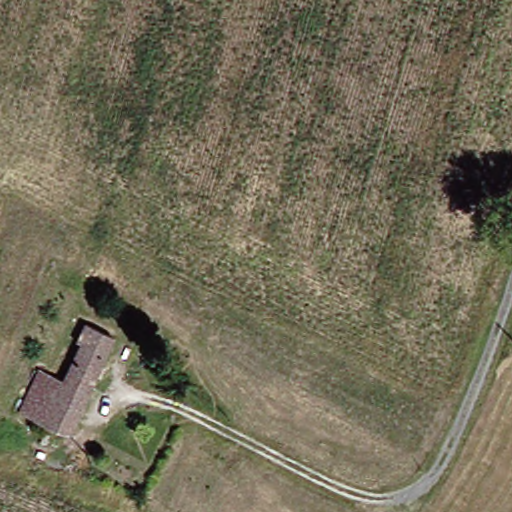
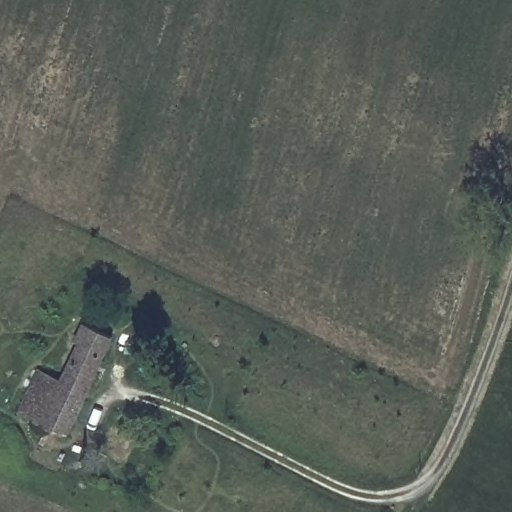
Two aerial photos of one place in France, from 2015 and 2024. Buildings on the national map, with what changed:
unchanged [(122,332),(77,433),(35,415),(54,375),(69,382),(86,346),(77,342),(87,320),(122,332)]

